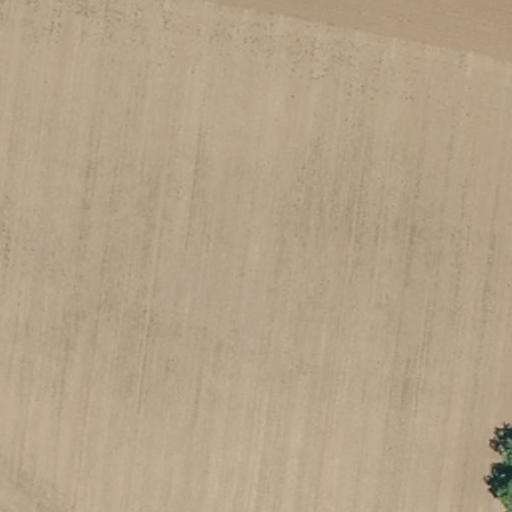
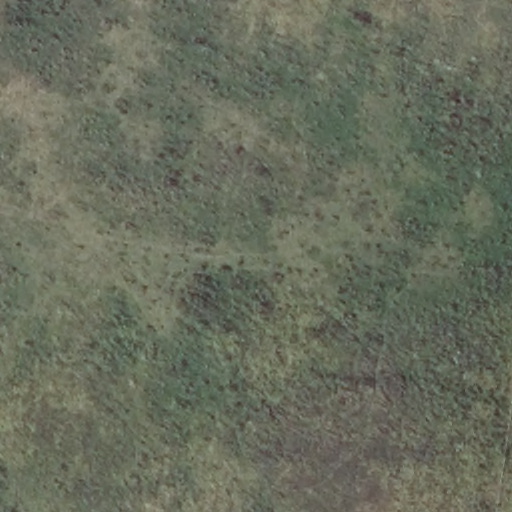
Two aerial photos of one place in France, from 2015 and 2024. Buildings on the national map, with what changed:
[]

